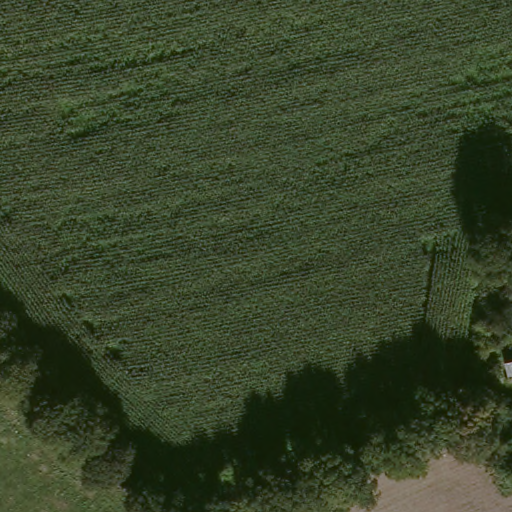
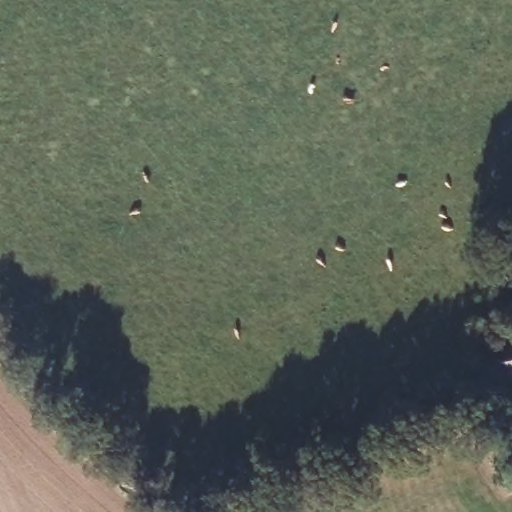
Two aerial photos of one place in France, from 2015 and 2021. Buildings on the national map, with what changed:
unchanged [(512,382),(509,382),(500,350),(512,347),(512,382)]

